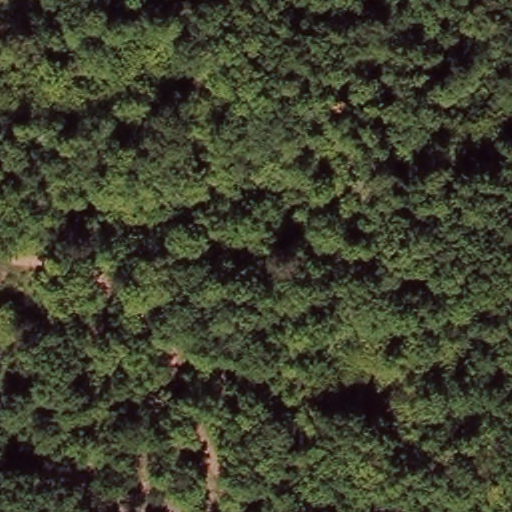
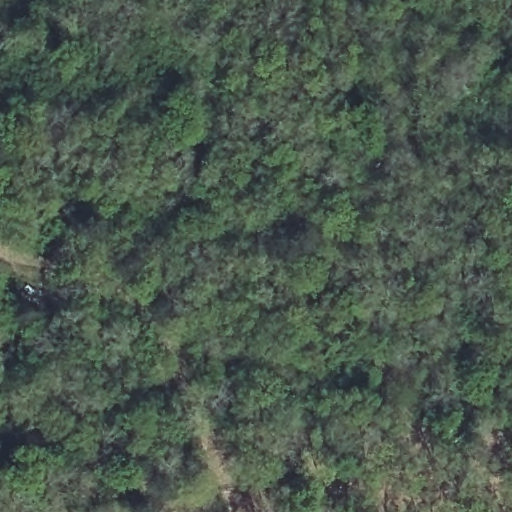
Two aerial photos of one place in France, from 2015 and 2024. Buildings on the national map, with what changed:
[]

